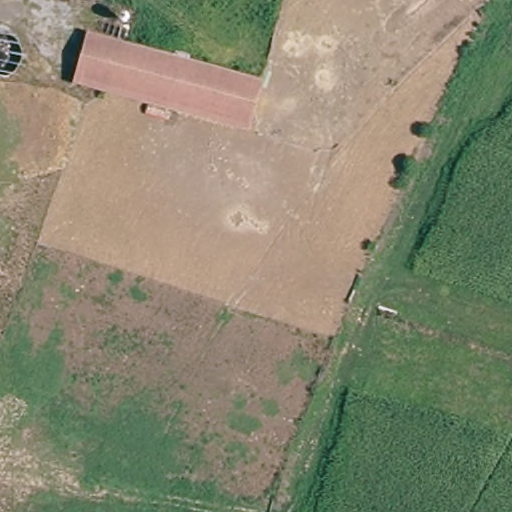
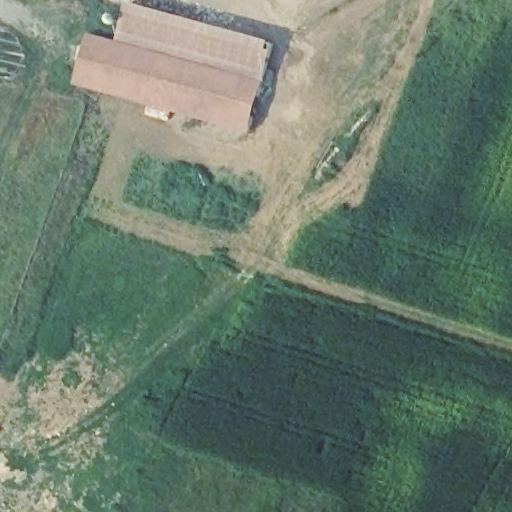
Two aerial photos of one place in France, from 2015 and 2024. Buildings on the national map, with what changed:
new [(116,41),(127,2),(274,42),(263,81),(116,41)]
unchanged [(75,82),(88,34),(116,41),(103,90),(75,82)]
unchanged [(250,129),(103,90),(116,41),(263,81),(250,129)]

